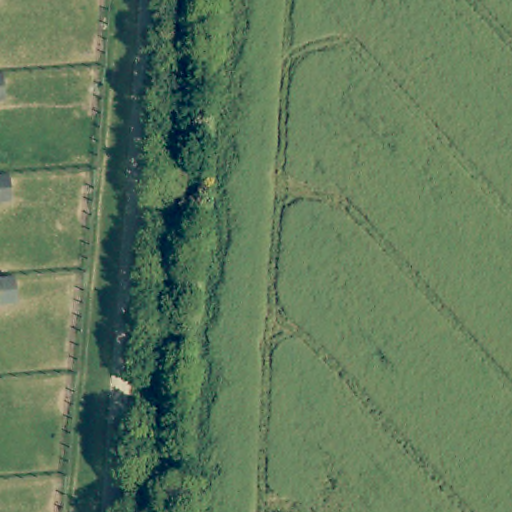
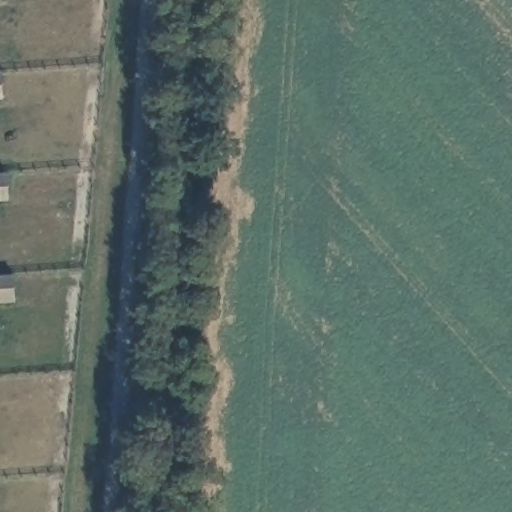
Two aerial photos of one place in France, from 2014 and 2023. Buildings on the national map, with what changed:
unchanged [(6,191),(0,191),(0,171),(4,171),(6,191)]
unchanged [(13,293),(0,294),(0,274),(11,273),(13,293)]

